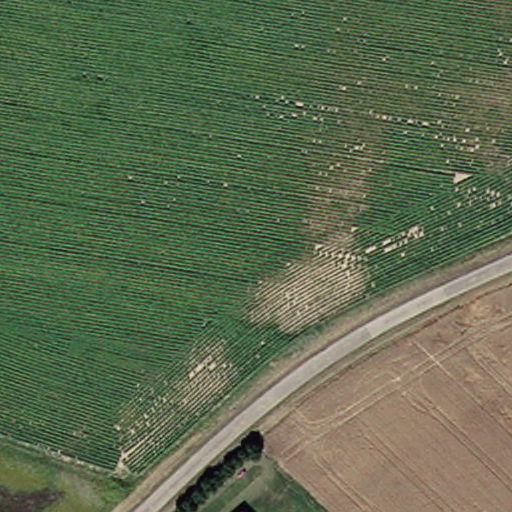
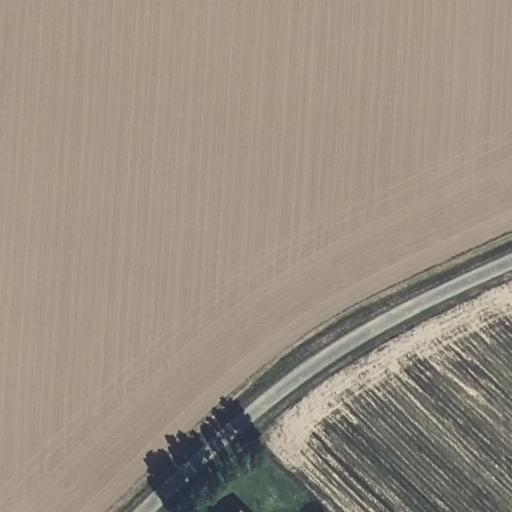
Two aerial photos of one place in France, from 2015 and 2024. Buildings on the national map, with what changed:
unchanged [(232,512),(229,512),(230,511),(232,512)]

